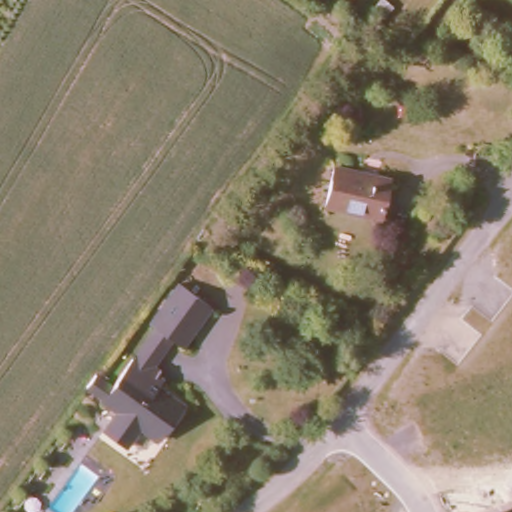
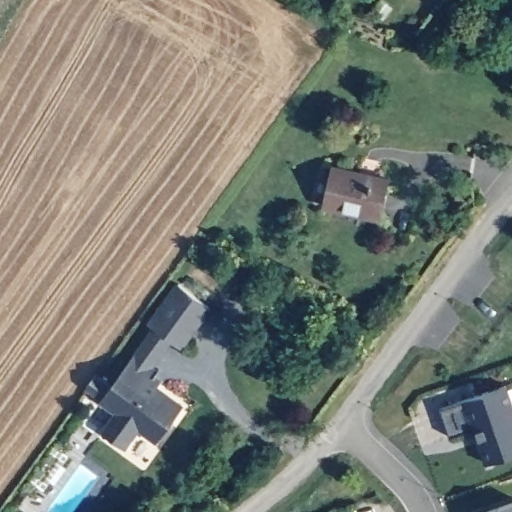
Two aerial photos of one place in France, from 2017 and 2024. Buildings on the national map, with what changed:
unchanged [(389,183),(380,222),(325,210),(334,170),(389,183)]
unchanged [(181,346),(150,323),(179,282),(187,272),(216,292),(209,303),(211,305),(181,346)]
unchanged [(175,343),(153,380),(186,400),(158,445),(141,434),(127,450),(98,428),(111,410),(99,400),(150,323),(175,343)]
new [(505,385),(512,407),(512,454),(487,462),(475,428),(450,436),(440,408),(505,385)]
unchanged [(512,503),(512,512),(484,512),(512,503)]

